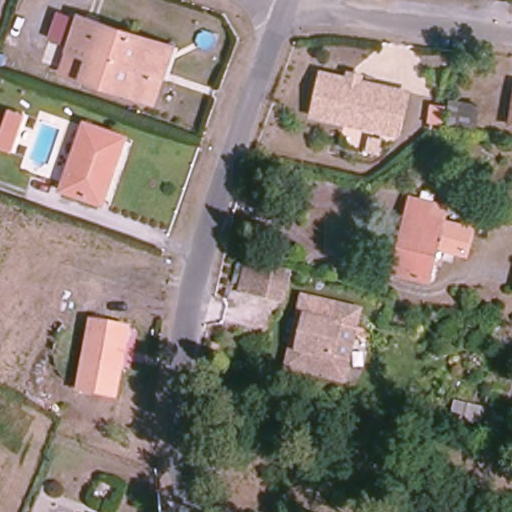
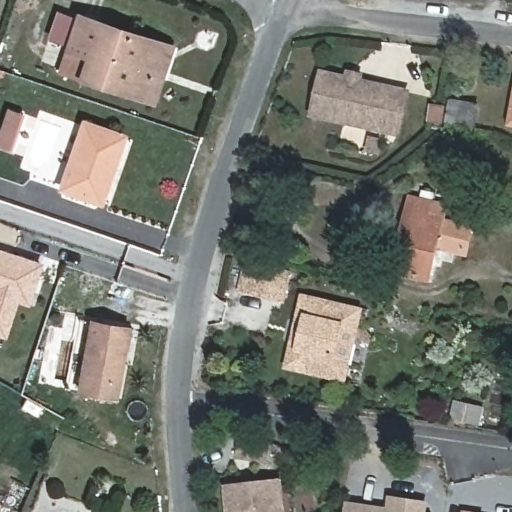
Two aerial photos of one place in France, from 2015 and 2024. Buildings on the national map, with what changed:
unchanged [(69,52),(81,18),(167,46),(175,49),(165,78),(156,103),(87,80),(62,72),(69,52)]
unchanged [(395,137),(378,133),(308,118),(318,76),(344,82),(346,76),(358,79),(357,84),(387,92),(404,95),(395,137)]
unchanged [(447,105),(447,111),(445,121),(432,119),(434,104),(447,105)]
new [(9,108),(23,113),(21,119),(10,151),(0,147),(0,134),(6,115),(9,108)]
unchanged [(123,139),(100,206),(58,192),(82,125),(123,139)]
unchanged [(444,203),(440,219),(470,227),(463,252),(434,245),(426,278),(391,269),(409,194),(430,200),(444,203)]
new [(6,337),(0,335),(0,249),(43,263),(28,306),(16,303),(6,337)]
unchanged [(283,300),(254,294),(241,291),(248,262),(256,264),(261,265),(290,272),(283,300)]
unchanged [(343,380),(287,367),(292,348),(299,317),(303,298),(359,311),(355,329),(347,361),(343,380)]
unchanged [(128,330),(116,402),(77,395),(89,324),(128,330)]
new [(267,462),(252,460),(236,457),(239,440),(255,441),(269,444),(267,462)]
new [(225,512),(222,485),(282,477),(286,512),(225,512)]
new [(343,512),(345,501),(385,507),(387,495),(427,500),(426,512),(343,512)]
new [(471,512),(461,512),(461,511),(471,512)]

